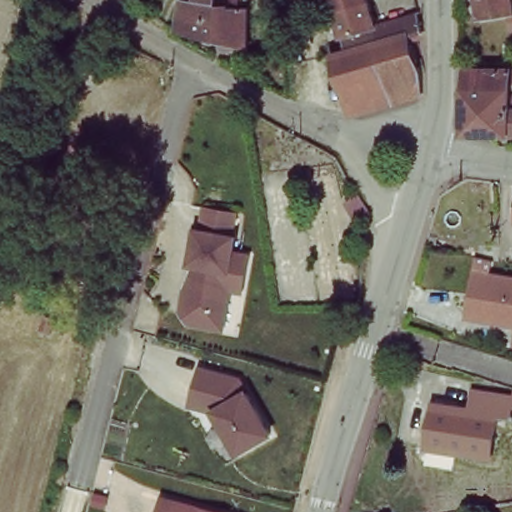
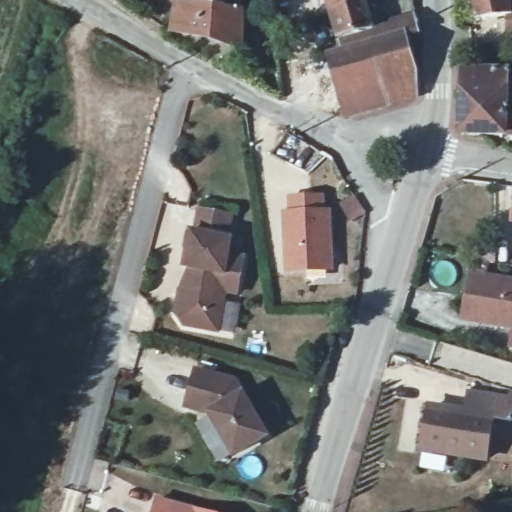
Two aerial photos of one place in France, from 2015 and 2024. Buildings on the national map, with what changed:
unchanged [(205,0),(264,0),(258,48),(238,37),(192,27),(192,0),(205,0)]
unchanged [(365,17),(382,14),(387,31),(370,37),(342,48),(326,0),(361,0),(365,17)]
unchanged [(512,3),(512,8),(479,14),(477,0),(511,0),(512,3)]
unchanged [(381,79),(370,37),(387,31),(382,14),(407,11),(413,31),(402,33),(409,67),(412,76),(418,91),(418,95),(387,104),(381,79)]
unchanged [(327,53),(332,51),(342,48),(370,37),(381,79),(340,95),(327,53)]
unchanged [(512,112),(512,136),(461,135),(462,107),(462,96),(462,74),(509,74),(510,97),(510,107),(510,113),(512,112)]
unchanged [(381,79),(387,104),(335,118),(333,112),(330,110),(330,102),(340,98),(340,95),(381,79)]
new [(282,211),(288,211),(288,197),(323,194),(325,210),(330,210),(332,271),(287,273),(282,211)]
unchanged [(240,214),(232,249),(250,254),(239,295),(227,294),(219,331),(175,321),(200,207),(240,214)]
unchanged [(472,269),(512,277),(512,330),(462,319),(472,269)]
unchanged [(510,351),(512,341),(512,351),(510,351)]
unchanged [(232,456),(206,412),(180,406),(193,364),(238,375),(272,435),(232,456)]
unchanged [(472,391),(507,400),(508,393),(512,394),(512,416),(510,423),(487,418),(478,459),(420,446),(429,402),(431,393),(453,398),(451,407),(467,411),(472,391)]
unchanged [(229,512),(151,512),(155,494),(229,512)]

